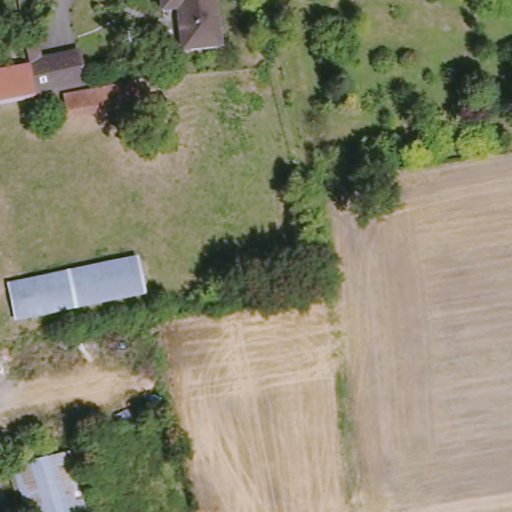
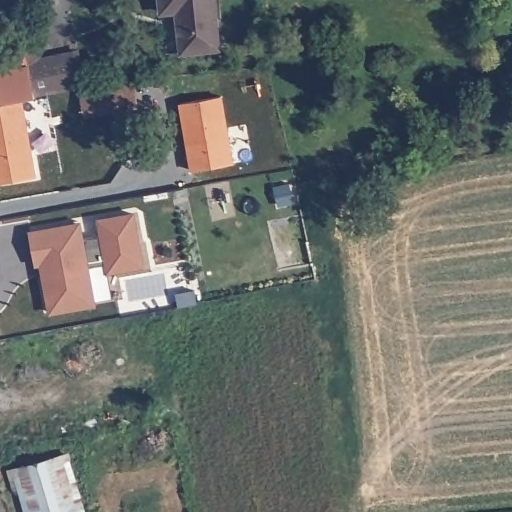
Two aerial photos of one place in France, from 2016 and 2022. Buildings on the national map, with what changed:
unchanged [(218,49),(184,52),(179,12),(164,12),(163,0),(188,0),(187,19),(216,24),(218,49)]
unchanged [(187,19),(188,0),(221,0),(221,25),(216,24),(187,19)]
unchanged [(145,104),(69,120),(65,92),(38,97),(28,47),(43,44),(47,56),(79,50),(90,90),(141,80),(145,104)]
unchanged [(0,104),(0,67),(28,63),(33,97),(0,104)]
new [(179,106),(220,98),(233,165),(192,172),(179,106)]
new [(18,106),(35,180),(0,188),(0,110),(18,106)]
new [(289,187),(293,205),(274,209),(271,191),(289,187)]
new [(49,313),(40,265),(35,266),(28,230),(83,220),(85,237),(99,234),(96,219),(135,211),(146,267),(106,273),(105,262),(91,265),(98,305),(49,313)]
demolished [(146,293),(16,322),(8,282),(143,255),(146,293)]
unchanged [(91,512),(26,512),(13,464),(73,451),(91,512)]

